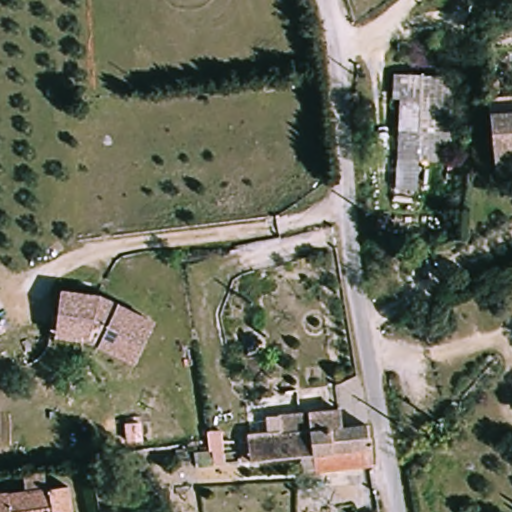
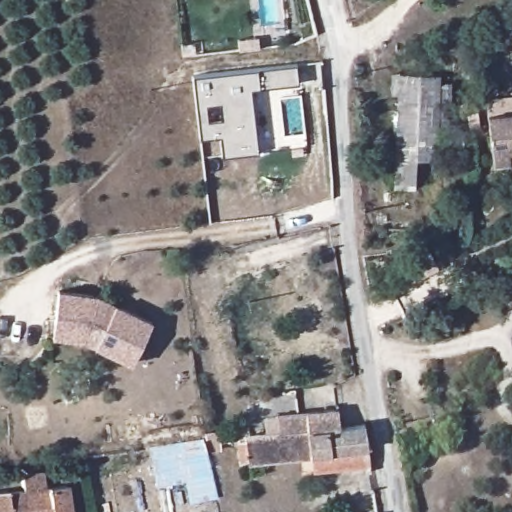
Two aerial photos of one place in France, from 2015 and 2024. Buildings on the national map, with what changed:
new [(239,42),(259,40),(260,50),(240,52),(239,42)]
new [(301,67),(303,87),(256,92),(263,155),(226,160),(224,140),(204,142),(196,80),(301,67)]
unchanged [(450,86),(448,125),(430,123),(428,157),(415,156),(387,155),(392,72),(433,75),(432,85),(450,86)]
unchanged [(489,112),(488,98),(512,97),(512,159),(510,160),(493,161),(489,112)]
unchanged [(415,156),(415,191),(386,191),(387,155),(415,156)]
unchanged [(103,285),(157,313),(135,353),(91,333),(60,340),(59,295),(103,285)]
unchanged [(367,471),(305,476),(303,461),(243,465),(240,440),(272,437),(270,420),(298,417),(310,417),(333,415),(335,432),(361,430),(367,471)]
unchanged [(225,462),(211,465),(206,431),(220,427),(225,462)]
unchanged [(67,487),(69,512),(0,512),(0,494),(67,487)]

